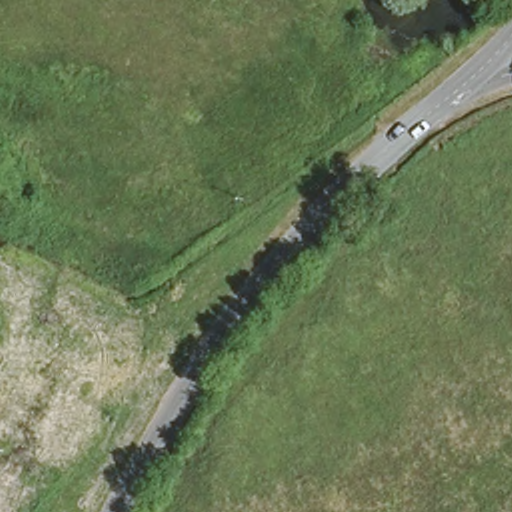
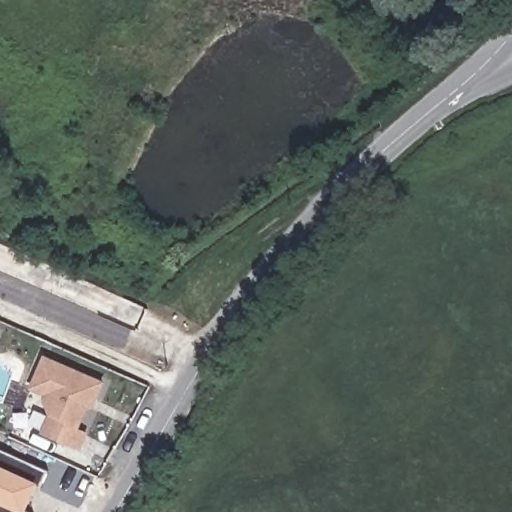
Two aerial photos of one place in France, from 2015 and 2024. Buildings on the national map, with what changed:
new [(44,357),(101,383),(94,400),(89,398),(77,430),(86,433),(80,449),(43,431),(50,413),(45,394),(30,388),(44,357)]
new [(41,486),(36,484),(25,509),(32,512),(0,512),(0,449),(48,470),(41,486)]

